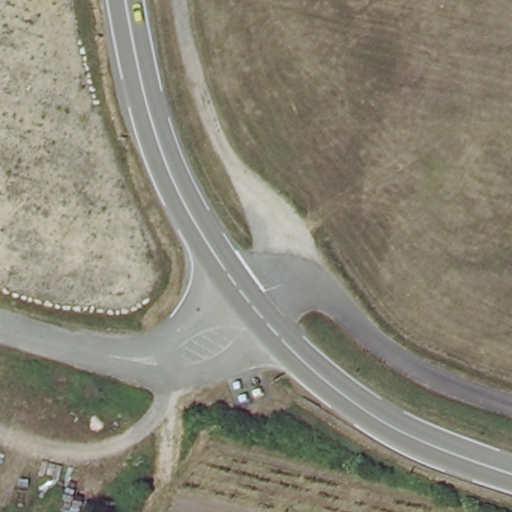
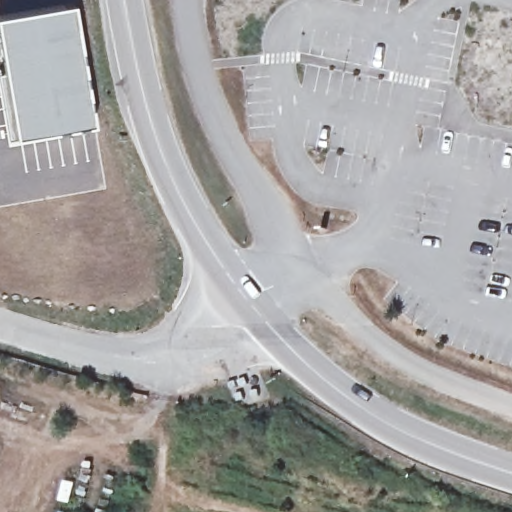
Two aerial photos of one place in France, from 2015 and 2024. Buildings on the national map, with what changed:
new [(95,122),(13,137),(0,51),(0,14),(75,1),(95,122)]

